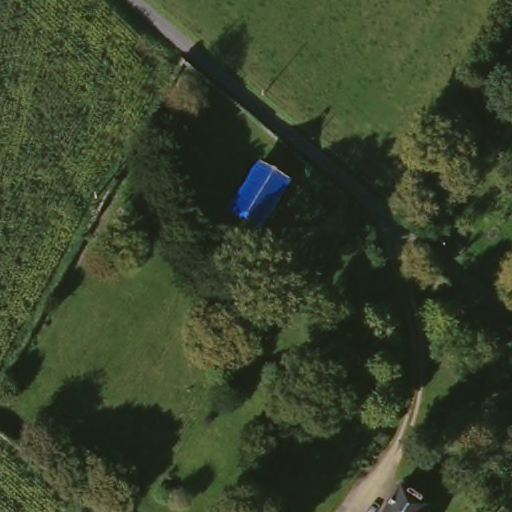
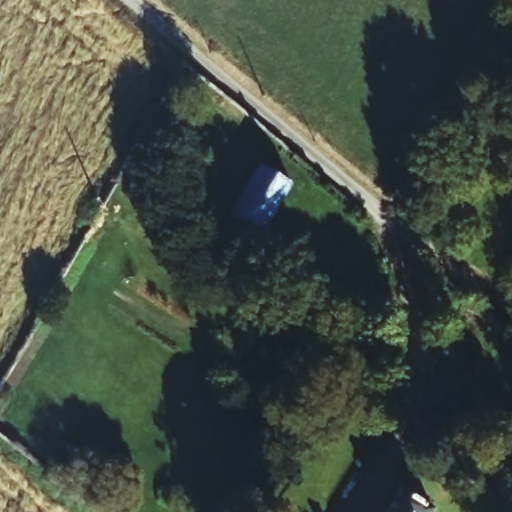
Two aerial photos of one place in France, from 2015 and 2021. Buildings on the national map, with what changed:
unchanged [(254,230),(245,233),(240,230),(231,225),(229,212),(257,165),(260,166),(281,178),(284,180),(256,229),(254,230)]
unchanged [(429,505),(425,512),(379,512),(395,486),(429,505)]

